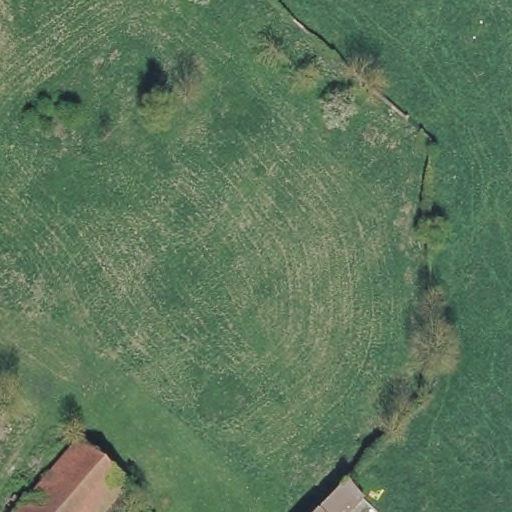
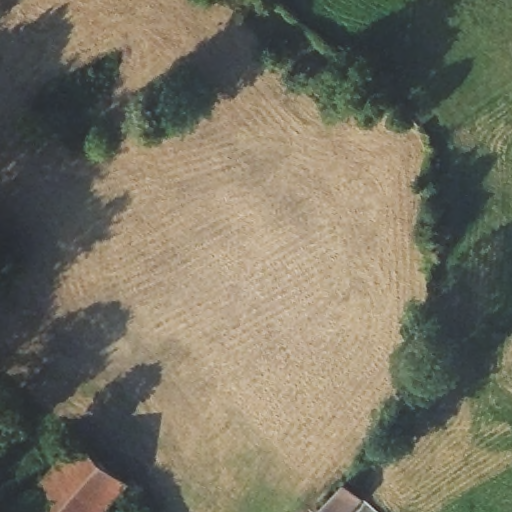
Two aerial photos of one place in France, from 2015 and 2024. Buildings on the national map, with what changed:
unchanged [(131,478),(123,487),(103,512),(15,512),(81,436),(131,478)]
unchanged [(362,497),(347,512),(311,512),(342,479),(362,497)]

